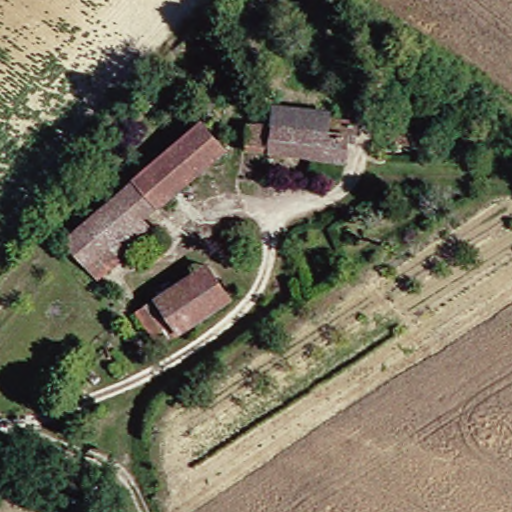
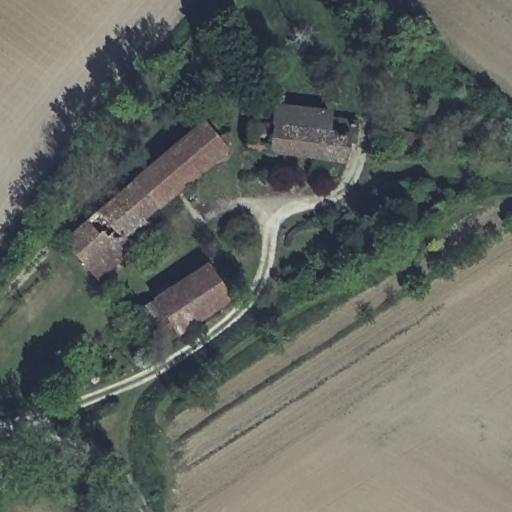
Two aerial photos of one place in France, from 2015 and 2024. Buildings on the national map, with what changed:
unchanged [(253,121),(298,123),(299,110),(335,111),(335,105),(350,106),(350,121),(334,120),(334,129),(353,131),(350,160),(275,156),(275,147),(249,144),(253,121)]
unchanged [(71,237),(205,119),(230,146),(140,227),(96,266),(71,237)]
unchanged [(153,240),(107,279),(96,266),(140,227),(153,240)]
unchanged [(239,295),(189,331),(166,297),(214,261),(239,295)]
unchanged [(184,334),(173,342),(150,309),(162,300),(184,334)]

